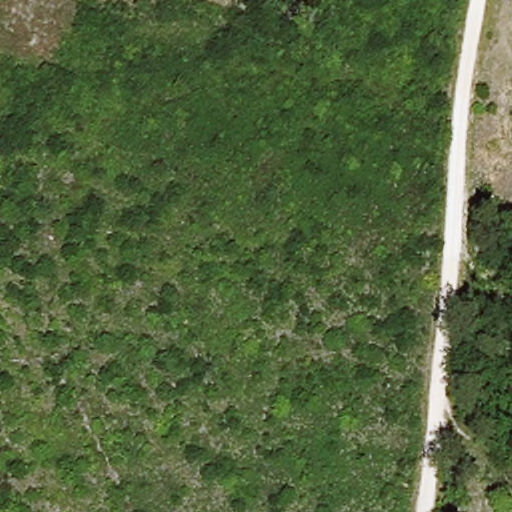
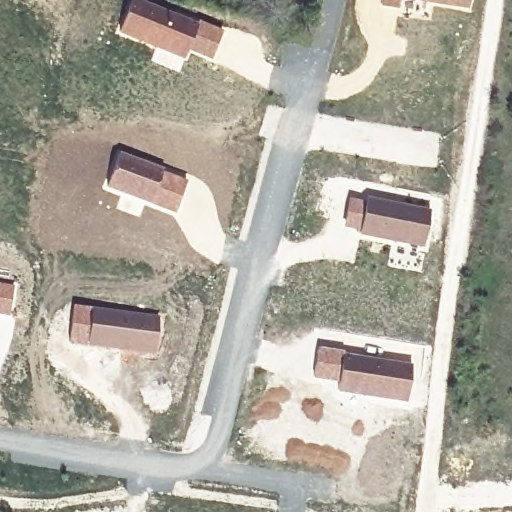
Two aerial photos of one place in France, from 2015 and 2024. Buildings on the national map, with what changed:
new [(211,60),(188,52),(180,73),(150,61),(155,49),(116,33),(130,0),(144,0),(200,20),(225,29),(211,60)]
new [(398,9),(379,6),(380,0),(399,0),(398,9)]
new [(468,9),(409,0),(469,0),(468,9)]
new [(119,150),(188,178),(175,213),(105,187),(119,150)]
new [(348,196),(365,199),(365,196),(430,207),(422,247),(358,234),(358,231),(342,227),(348,196)]
new [(15,284),(9,316),(0,314),(0,282),(15,284)]
new [(72,303),(159,314),(155,353),(68,343),(72,303)]
new [(311,379),(317,346),(343,351),(412,361),(406,402),(336,392),(337,383),(311,379)]

